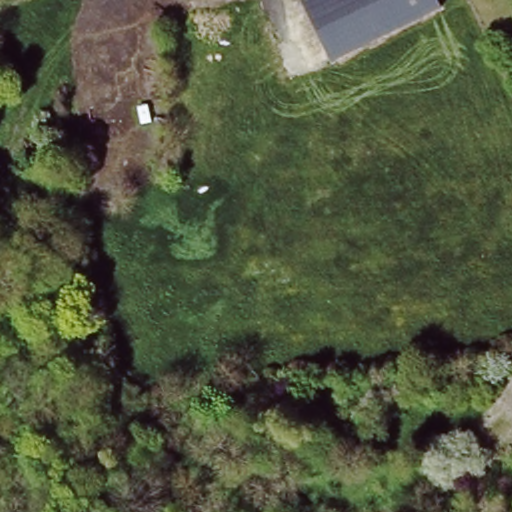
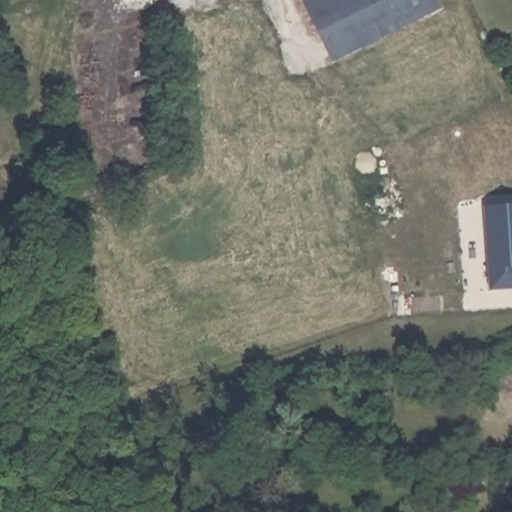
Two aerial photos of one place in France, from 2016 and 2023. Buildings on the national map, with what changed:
unchanged [(306,0),(436,0),(440,6),(333,60),(303,2),(306,0)]
new [(512,286),(491,289),(483,205),(512,202),(512,286)]

